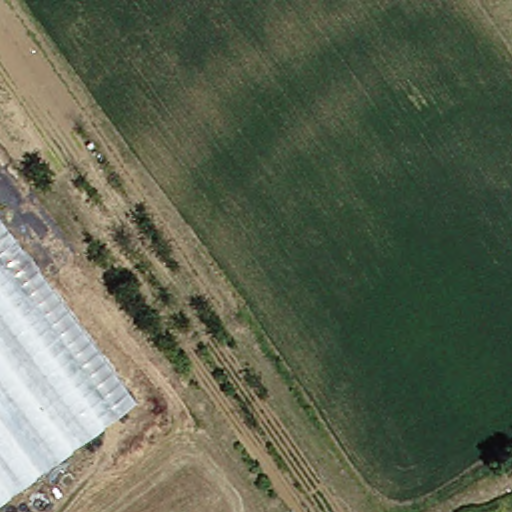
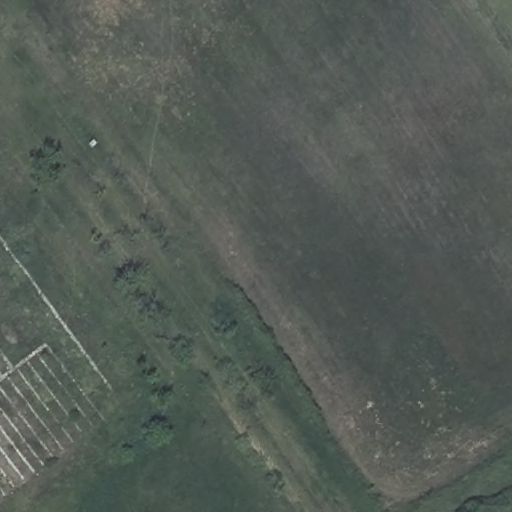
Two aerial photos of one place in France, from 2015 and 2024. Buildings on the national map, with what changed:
demolished [(133,398),(0,501),(0,223),(133,398)]
unchanged [(512,504),(512,512),(496,512),(512,504)]

